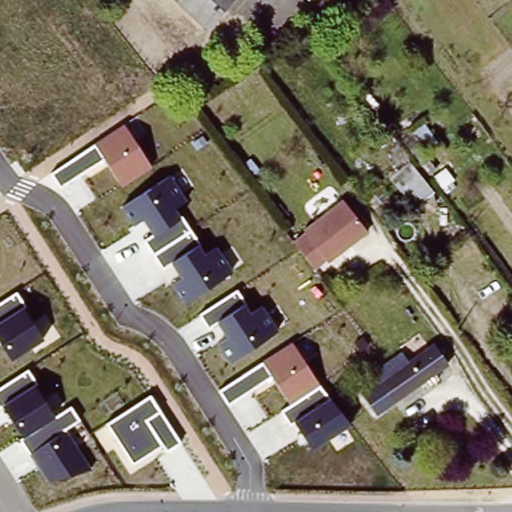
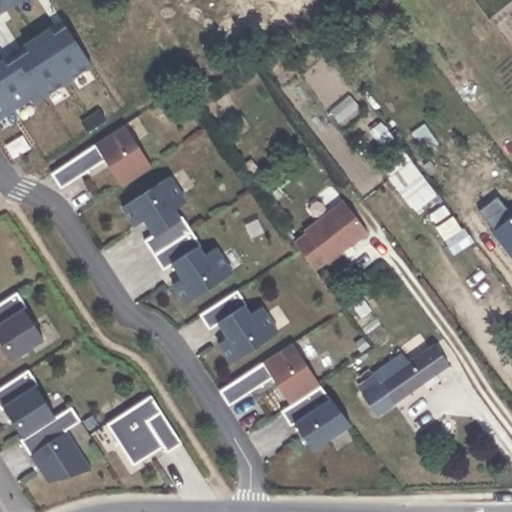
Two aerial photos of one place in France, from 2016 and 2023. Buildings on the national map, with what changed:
new [(19,0),(0,13),(0,0),(19,0)]
demolished [(173,0),(221,0),(198,24),(173,0)]
new [(174,0),(233,0),(206,30),(174,0)]
new [(45,97),(34,104),(31,99),(0,120),(0,60),(3,59),(7,64),(26,51),(21,44),(49,24),(54,31),(66,23),(93,65),(45,97)]
unchanged [(121,187),(104,159),(60,188),(52,174),(123,124),(151,168),(121,187)]
unchanged [(387,170),(411,158),(434,188),(411,207),(387,170)]
unchanged [(144,240),(151,235),(142,220),(134,225),(123,207),(171,177),(188,202),(176,209),(181,217),(182,216),(201,246),(200,247),(206,254),(216,248),(231,271),(182,303),(171,285),(179,279),(171,264),(163,269),(144,240)]
unchanged [(344,200),(366,230),(316,269),(293,239),(344,200)]
unchanged [(237,289),(246,304),(244,305),(251,314),(262,305),(278,330),(229,363),(217,345),(226,338),(217,324),(209,329),(199,314),(237,289)]
unchanged [(16,293),(24,307),(21,308),(43,339),(10,359),(0,344),(0,303),(16,293)]
unchanged [(434,340),(449,363),(377,414),(361,394),(434,340)]
unchanged [(293,343),(348,424),(311,449),(294,423),(291,426),(281,411),(289,404),(271,376),(228,405),(219,391),(293,343)]
unchanged [(371,374),(401,352),(408,359),(376,383),(371,374)]
unchanged [(28,369),(36,384),(35,385),(55,417),(71,407),(80,420),(65,429),(90,469),(48,481),(20,438),(22,437),(3,407),(0,408),(0,387),(28,369)]
unchanged [(150,395),(181,442),(166,451),(161,444),(133,464),(107,423),(150,395)]

